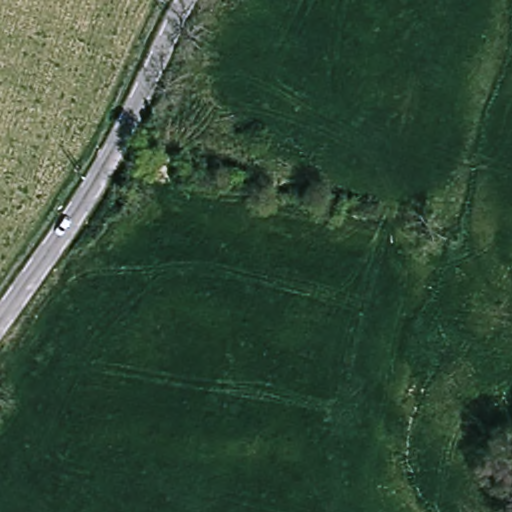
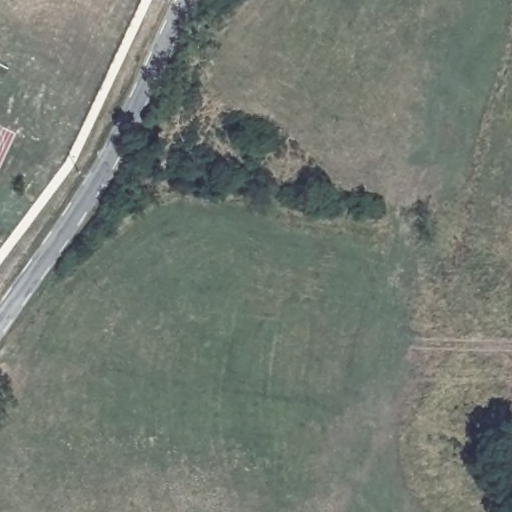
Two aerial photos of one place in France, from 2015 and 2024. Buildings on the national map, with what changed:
[]

